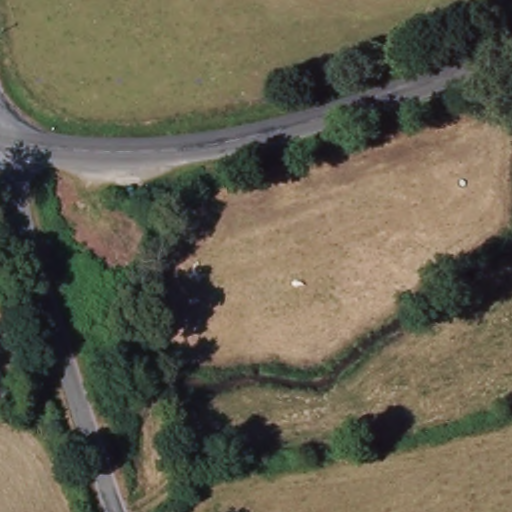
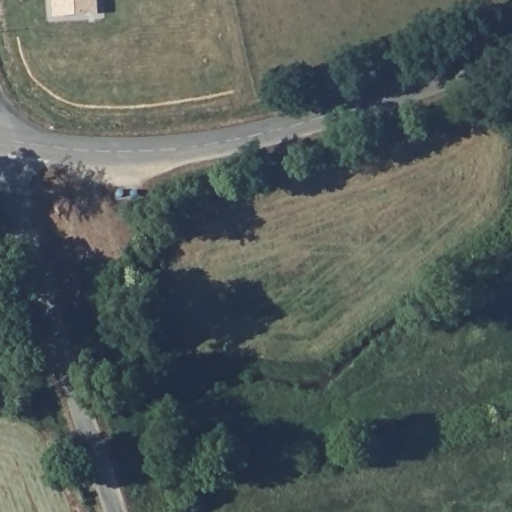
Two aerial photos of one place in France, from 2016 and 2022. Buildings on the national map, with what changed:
new [(100,15),(53,20),(52,0),(98,0),(100,15)]

